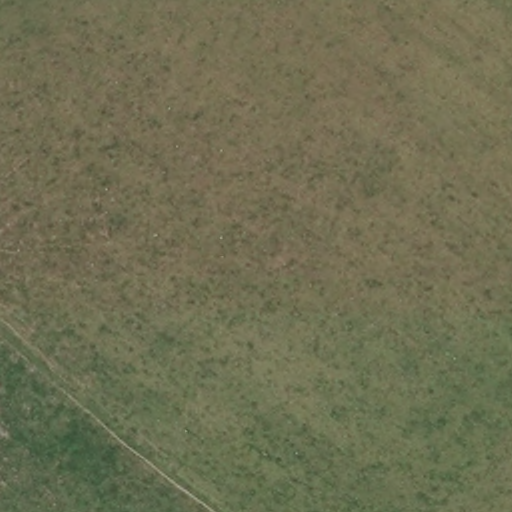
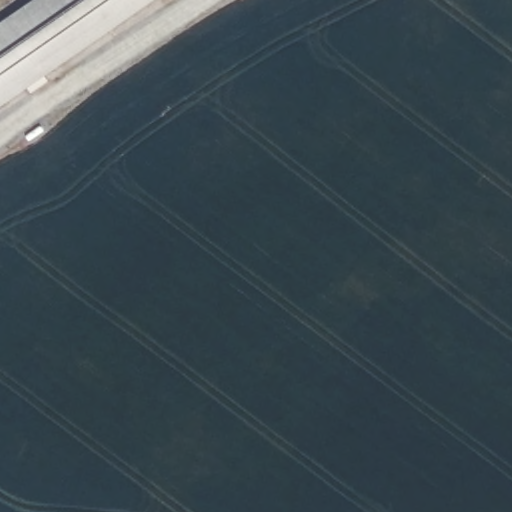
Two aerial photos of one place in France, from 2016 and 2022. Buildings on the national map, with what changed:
new [(0,105),(0,22),(31,0),(149,0),(0,105)]

